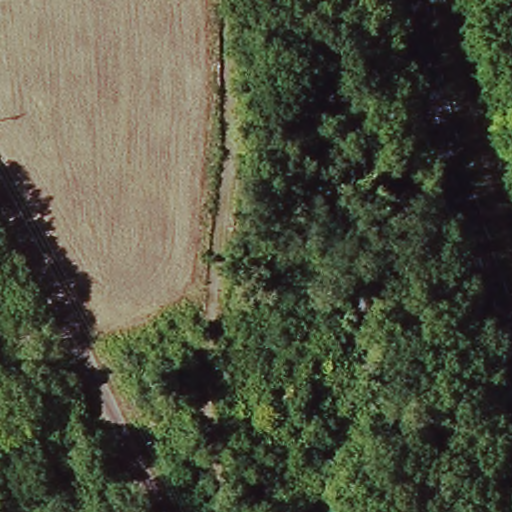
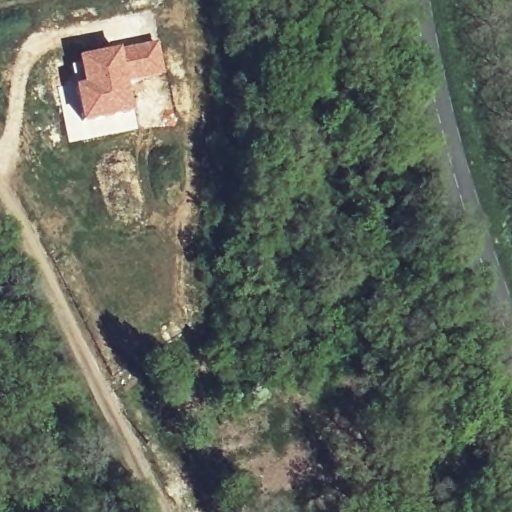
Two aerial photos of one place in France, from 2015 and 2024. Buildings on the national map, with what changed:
new [(80,84),(75,57),(156,39),(165,74),(126,84),(132,112),(80,124),(72,85),(80,84)]
unchanged [(376,300),(355,312),(340,282),(363,271),(376,300)]

